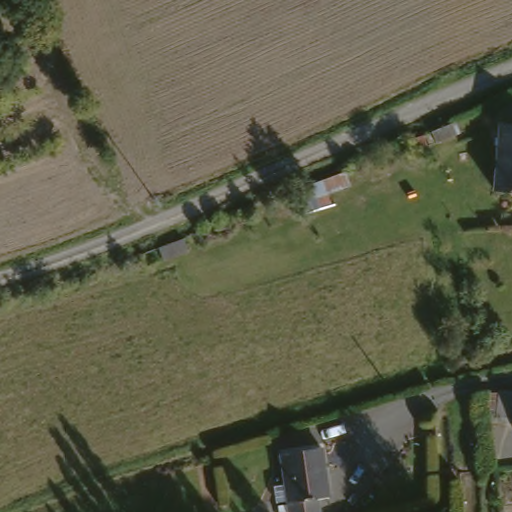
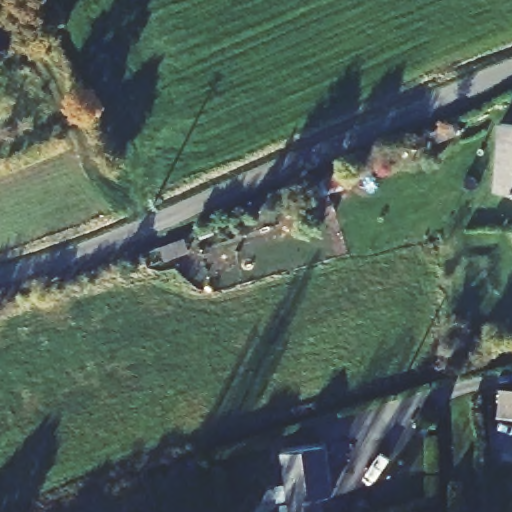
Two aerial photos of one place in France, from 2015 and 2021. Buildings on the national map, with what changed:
unchanged [(456,134),(436,141),(432,131),(452,123),(456,134)]
unchanged [(512,124),(512,191),(496,190),(502,123),(512,124)]
unchanged [(347,177),(351,190),(327,197),(331,208),(306,216),(298,192),(347,177)]
unchanged [(184,239),(188,252),(163,261),(158,248),(184,239)]
unchanged [(497,420),(501,394),(512,396),(512,422),(497,420)]
unchanged [(318,496),(320,512),(288,512),(282,451),(322,446),(327,495),(318,496)]

